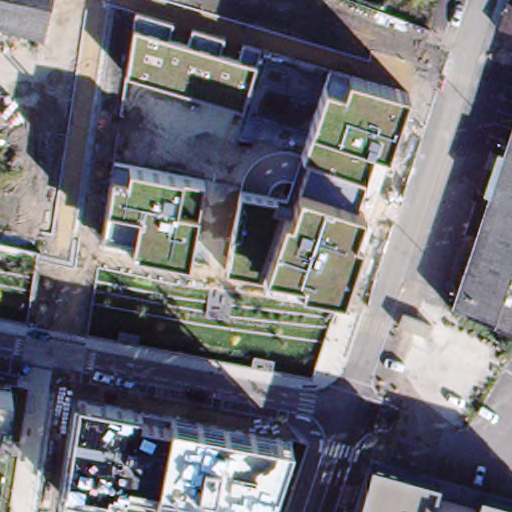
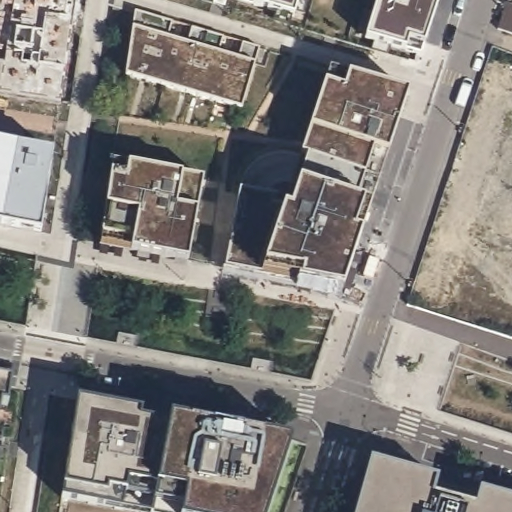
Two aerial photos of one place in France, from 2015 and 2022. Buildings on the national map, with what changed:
unchanged [(0,29),(0,0),(49,0),(39,39),(0,29)]
new [(240,0),(297,0),(292,15),(254,4),(240,0)]
new [(405,50),(366,38),(378,0),(438,0),(424,44),(409,39),(405,50)]
unchanged [(504,4),(512,6),(512,35),(496,29),(504,4)]
unchanged [(125,74),(136,12),(172,23),(168,39),(187,45),(192,29),(223,39),(218,54),(239,58),(243,44),(259,49),(241,109),(125,74)]
unchanged [(241,191),(288,198),(331,69),(408,92),(341,292),(225,268),(241,191)]
new [(512,120),(512,330),(450,305),(512,120)]
new [(39,235),(0,228),(0,146),(51,156),(39,235)]
demolished [(460,309),(512,155),(512,331),(474,315),(460,309)]
unchanged [(187,262),(100,245),(114,162),(201,179),(187,262)]
unchanged [(0,442),(0,385),(9,387),(0,442)]
unchanged [(267,512),(140,512),(60,497),(75,398),(291,442),(267,512)]
unchanged [(434,494),(474,505),(479,491),(512,500),(512,512),(356,512),(370,461),(439,479),(434,494)]

